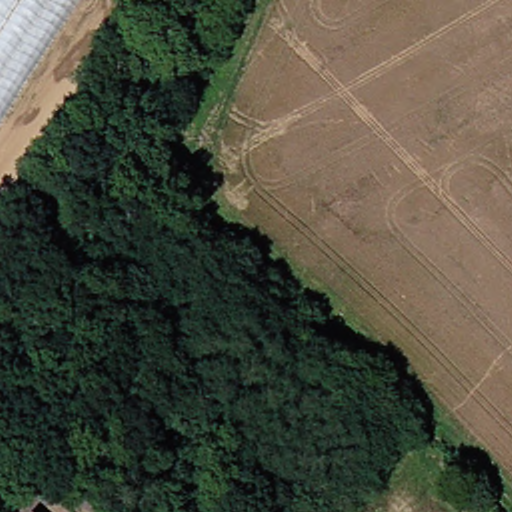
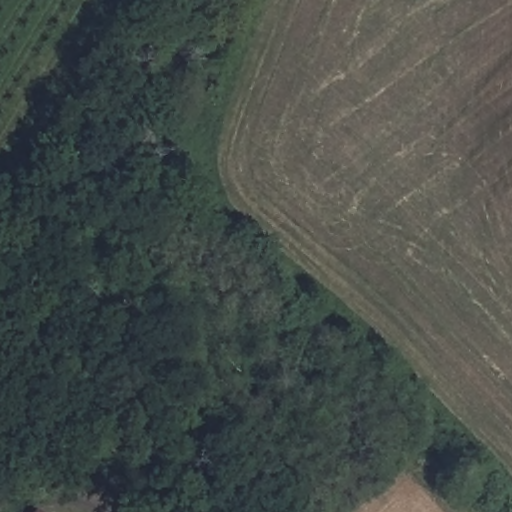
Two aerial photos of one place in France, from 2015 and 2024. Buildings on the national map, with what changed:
new [(0,0),(78,0),(0,121),(0,0)]

